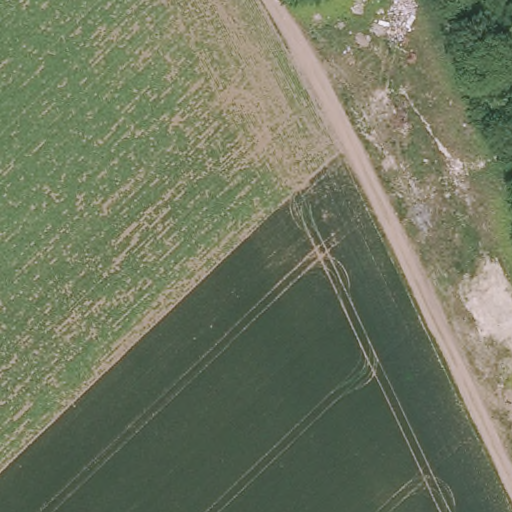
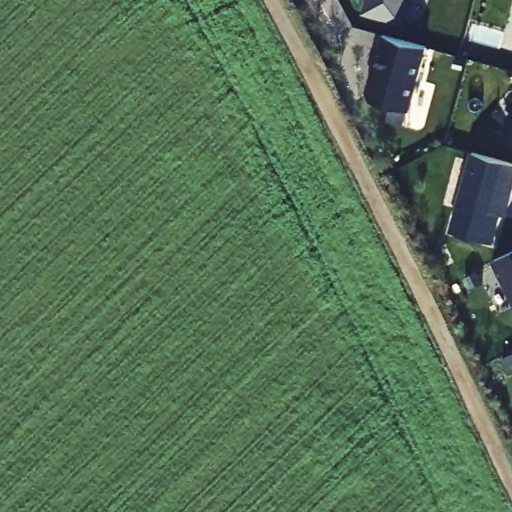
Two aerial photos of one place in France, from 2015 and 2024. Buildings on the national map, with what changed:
new [(402,21),(367,12),(370,0),(407,0),(402,21)]
new [(410,110),(372,100),(367,93),(371,81),(378,77),(385,52),(380,51),(384,34),(427,47),(410,110)]
new [(512,119),(512,127),(508,124),(512,119)]
new [(512,163),(512,193),(512,195),(507,192),(492,243),(452,232),(474,152),(512,163)]
new [(512,254),(512,307),(492,264),(512,254)]

